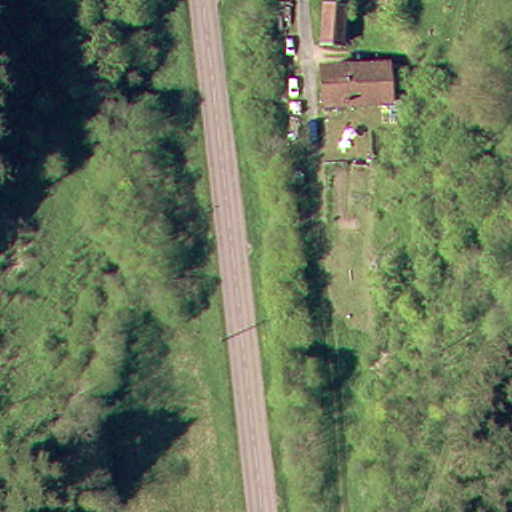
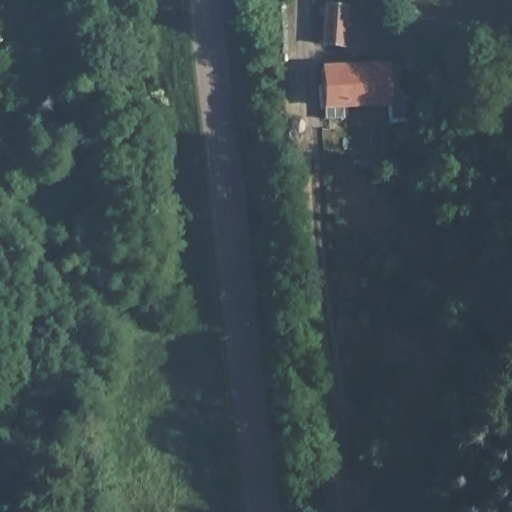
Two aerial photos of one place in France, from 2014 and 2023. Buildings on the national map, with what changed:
unchanged [(341,10),(337,44),(317,42),(320,7),(341,10)]
unchanged [(395,102),(345,107),(345,113),(322,114),(317,70),(337,67),(389,64),(395,102)]

